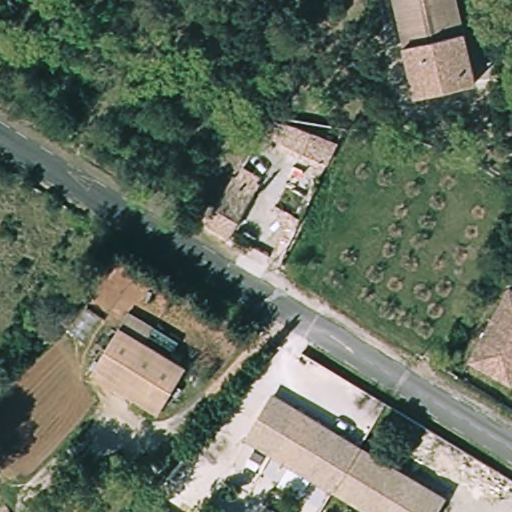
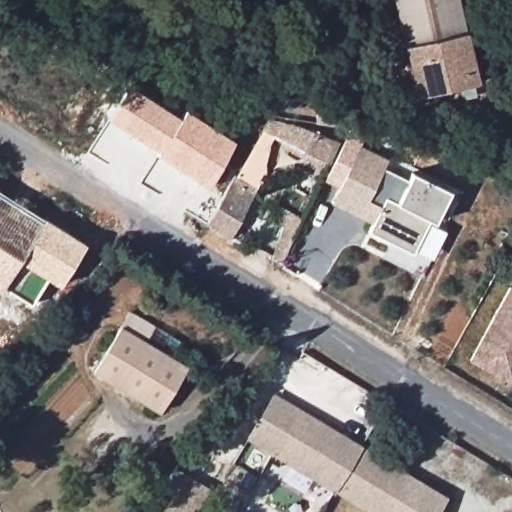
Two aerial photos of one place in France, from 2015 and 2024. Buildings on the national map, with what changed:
unchanged [(415,95),(395,0),(459,0),(476,82),(415,95)]
new [(180,117),(185,109),(235,140),(208,185),(157,154),(158,152),(107,117),(130,84),(180,117)]
new [(231,179),(234,174),(236,175),(269,117),(277,122),(271,134),(274,135),(270,143),(266,162),(265,173),(254,193),(232,180),(231,179)]
unchanged [(309,129),(348,147),(340,165),(271,134),(277,122),(309,129)]
new [(340,165),(348,147),(342,144),(349,131),(364,139),(360,146),(340,187),(324,179),(332,161),(340,165)]
new [(389,160),(384,169),(408,179),(411,172),(450,192),(435,223),(430,221),(413,254),(368,232),(372,224),(332,203),(360,146),(389,160)]
unchanged [(208,220),(231,179),(254,193),(232,235),(208,220)]
new [(43,217),(44,215),(85,242),(58,285),(46,276),(30,300),(3,284),(0,289),(0,190),(43,217)]
new [(283,212),(299,216),(287,264),(271,260),(283,212)]
unchanged [(473,363),(511,289),(512,290),(512,384),(508,381),(473,363)]
unchanged [(133,321),(156,335),(148,349),(190,374),(161,422),(96,382),(133,321)]
unchanged [(249,439),(274,395),(317,421),(292,464),(249,439)]
unchanged [(363,448),(338,491),(292,464),(317,421),(363,448)]
new [(384,461),(359,504),(338,491),(363,448),(384,461)]
unchanged [(439,512),(372,512),(359,504),(384,461),(448,498),(439,512)]
new [(211,490),(196,512),(167,512),(149,499),(176,469),(211,490)]

